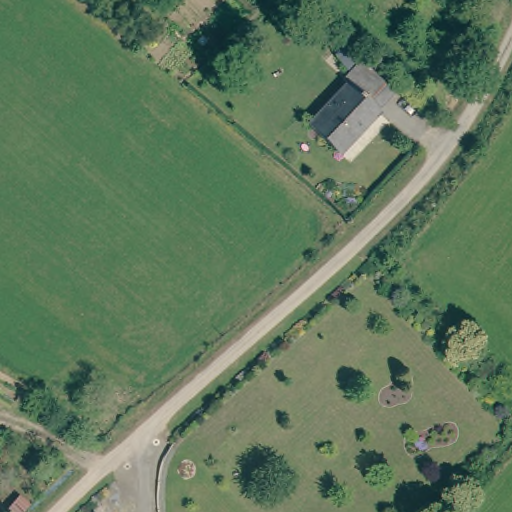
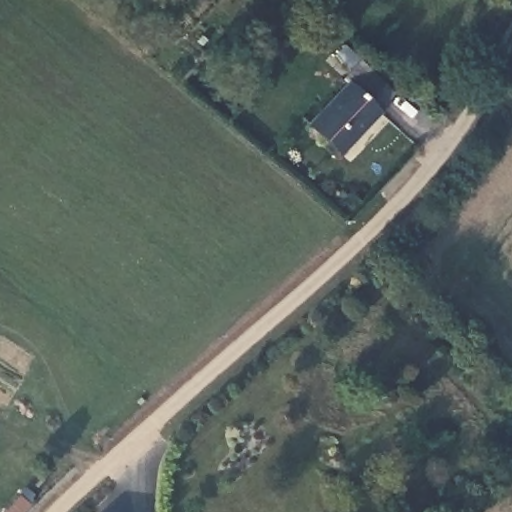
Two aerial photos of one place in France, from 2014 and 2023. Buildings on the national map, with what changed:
unchanged [(358,61),(391,91),(377,106),(380,109),(340,151),(307,122),(347,80),(343,76),(358,61)]

